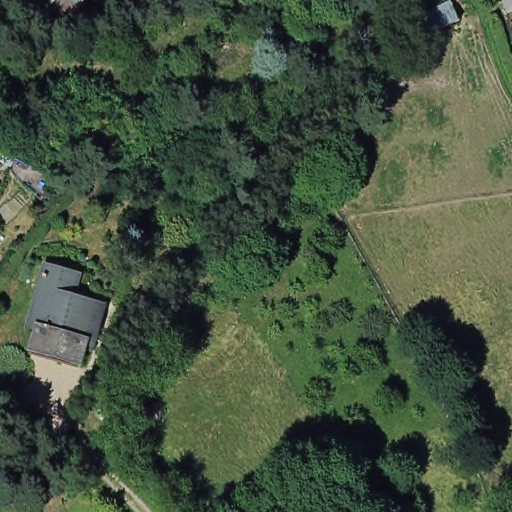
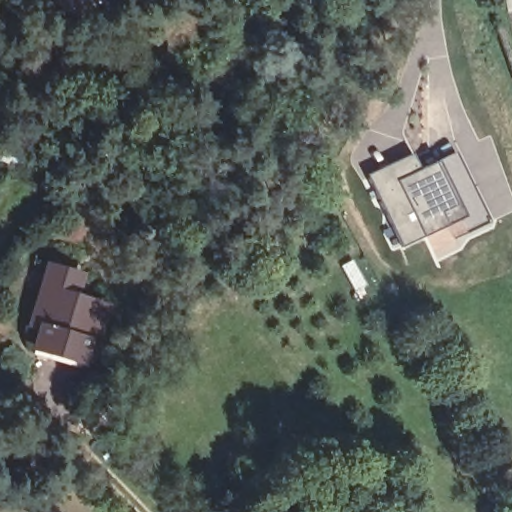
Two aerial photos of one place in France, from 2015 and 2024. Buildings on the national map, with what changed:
unchanged [(42,0),(44,0),(43,1),(42,0)]
unchanged [(55,0),(88,0),(70,16),(55,0)]
demolished [(434,30),(426,6),(443,0),(456,0),(463,20),(434,30)]
unchanged [(504,0),(512,0),(512,23),(505,5),(504,0)]
new [(412,153),(421,167),(456,152),(492,222),(467,233),(462,220),(403,247),(368,175),(412,153)]
unchanged [(92,338),(83,335),(40,323),(29,320),(42,262),(62,268),(101,280),(95,302),(100,303),(92,338)]
unchanged [(74,363),(32,349),(40,323),(83,335),(74,363)]

